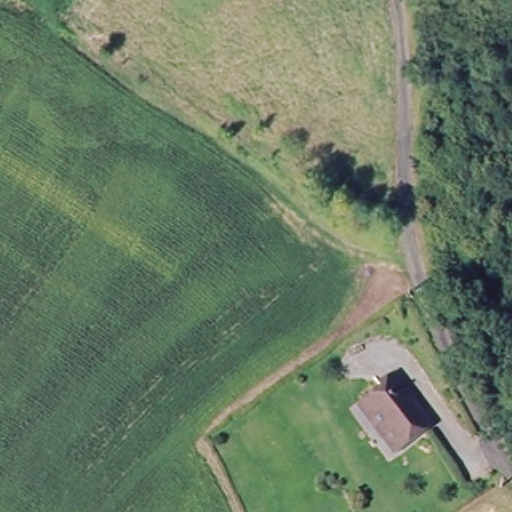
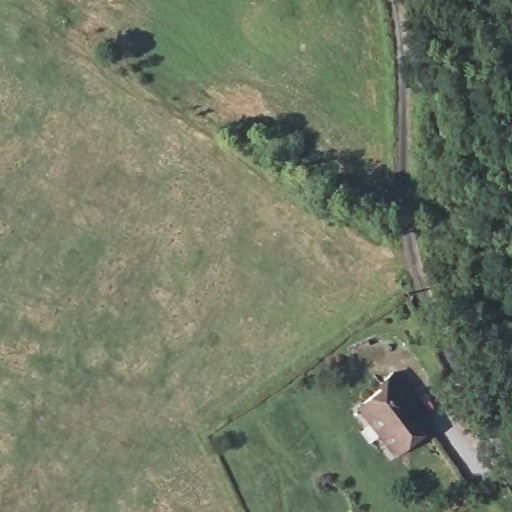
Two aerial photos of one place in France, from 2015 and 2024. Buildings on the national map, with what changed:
unchanged [(381,390),(377,385),(393,374),(413,402),(411,405),(428,430),(393,456),(377,433),(357,406),(365,401),(381,390)]

